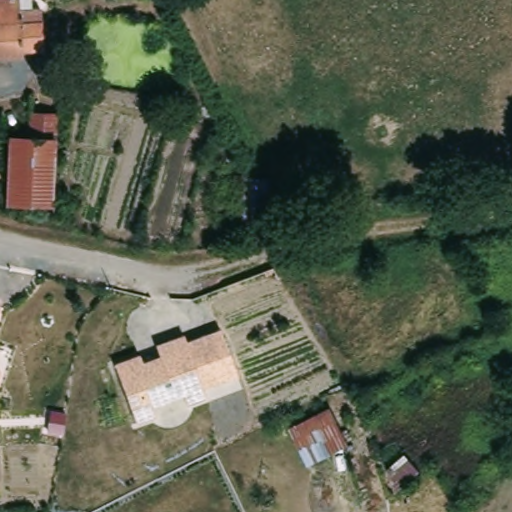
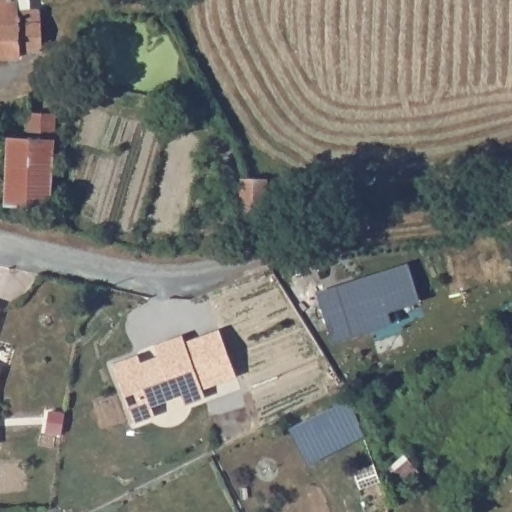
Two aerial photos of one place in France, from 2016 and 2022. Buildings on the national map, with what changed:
unchanged [(33,9),(34,20),(41,20),(41,51),(21,50),(20,60),(0,59),(0,0),(16,0),(16,8),(33,9)]
unchanged [(21,144),(25,100),(40,101),(44,73),(59,74),(70,75),(70,77),(63,76),(56,91),(55,101),(45,211),(34,209),(4,208),(0,207),(0,165),(2,142),(21,144)]
unchanged [(268,178),(266,224),(239,225),(240,177),(268,178)]
new [(406,259),(418,295),(386,305),(390,317),(333,335),(317,288),(406,259)]
unchanged [(236,376),(203,389),(185,342),(220,328),(236,376)]
unchanged [(141,361),(157,355),(153,343),(181,333),(206,397),(184,404),(180,395),(151,406),(155,416),(134,422),(112,361),(138,353),(141,361)]
unchanged [(323,412),(341,449),(300,469),(282,432),(323,412)]

